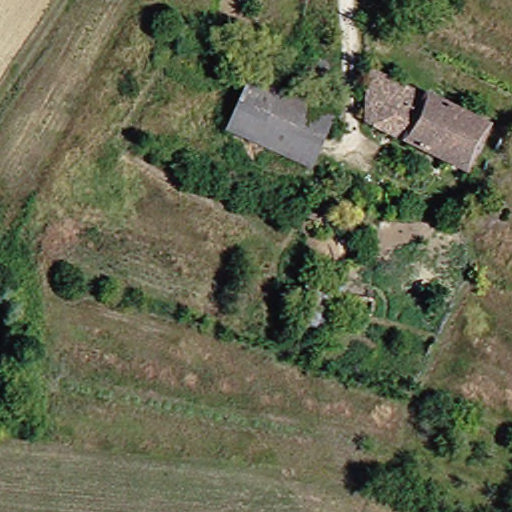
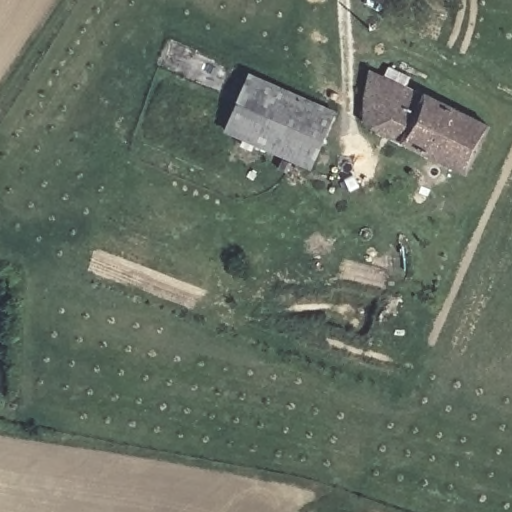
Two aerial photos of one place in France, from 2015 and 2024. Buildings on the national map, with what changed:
unchanged [(360,121),(372,73),(420,100),(426,90),(487,128),(467,174),(360,121)]
unchanged [(333,113),(309,169),(228,134),(251,76),(333,113)]

